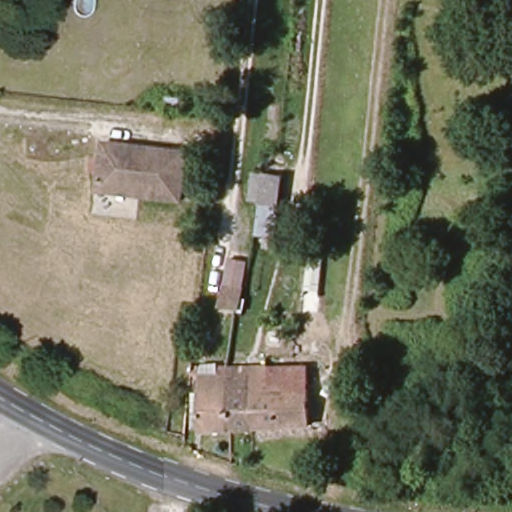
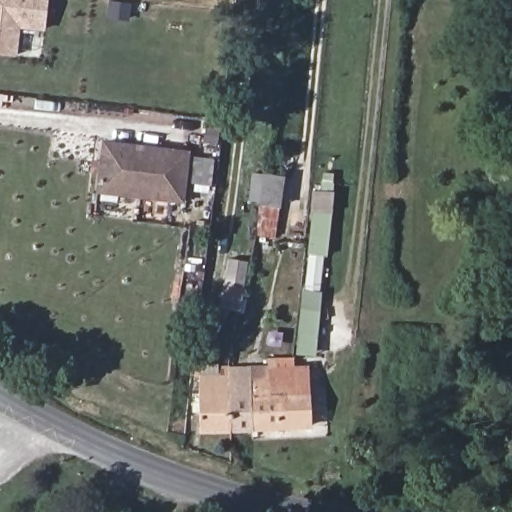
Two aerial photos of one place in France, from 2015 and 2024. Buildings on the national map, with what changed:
new [(16,26),(14,55),(0,53),(0,0),(45,0),(42,29),(16,26)]
unchanged [(194,203),(105,194),(109,145),(197,154),(194,203)]
unchanged [(275,247),(256,247),(261,204),(252,202),(253,171),(284,174),(275,247)]
new [(323,291),(317,356),(295,354),(297,338),(300,338),(313,190),(335,192),(329,256),(323,291)]
unchanged [(242,309),(222,307),(226,260),(247,262),(242,309)]
unchanged [(247,385),(269,383),(268,363),(308,361),(313,422),(248,427),(247,385)]
unchanged [(228,429),(225,365),(268,363),(269,383),(247,385),(248,427),(228,429)]
unchanged [(228,429),(199,431),(195,366),(225,365),(228,429)]

